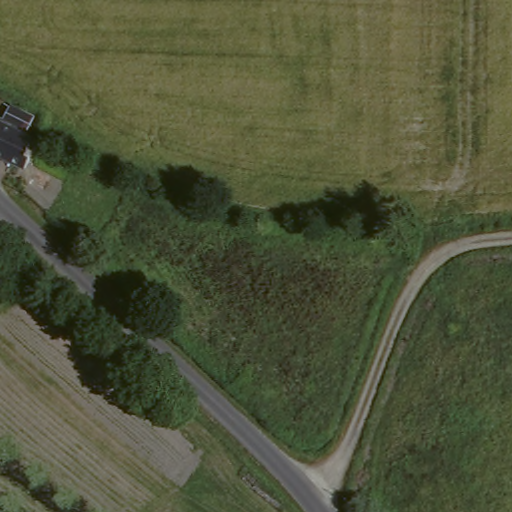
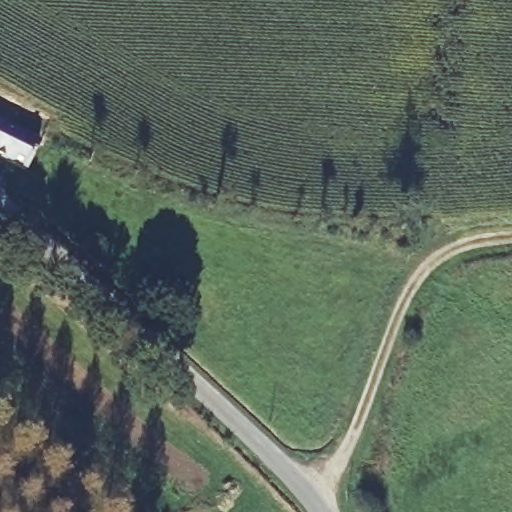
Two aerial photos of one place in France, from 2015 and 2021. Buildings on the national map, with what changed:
unchanged [(27,169),(0,155),(0,117),(39,136),(27,169)]

